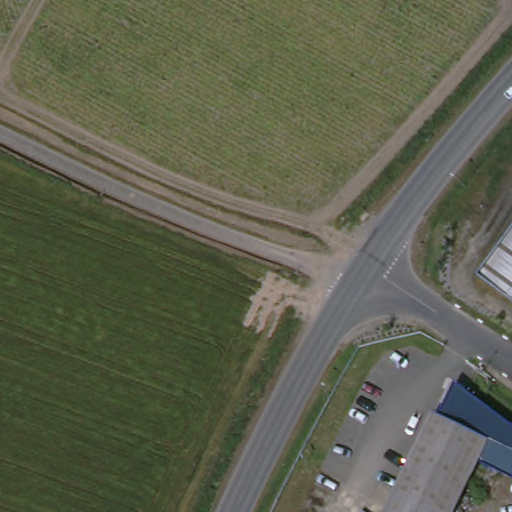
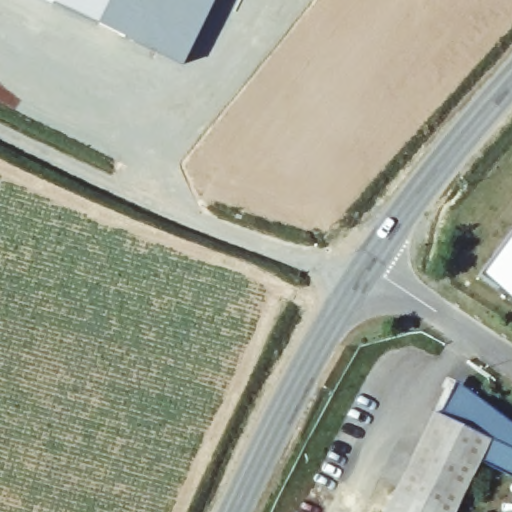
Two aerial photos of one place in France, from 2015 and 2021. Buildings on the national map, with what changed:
new [(145,44),(52,0),(166,0),(145,44)]
new [(166,0),(214,0),(184,63),(145,44),(166,0)]
unchanged [(512,229),(512,297),(480,274),(512,229)]
unchanged [(493,440),(442,414),(454,384),(512,425),(512,473),(484,458),(493,440)]
unchanged [(456,512),(425,512),(391,496),(433,409),(493,440),(456,512)]
unchanged [(383,512),(391,496),(425,512),(383,512)]

